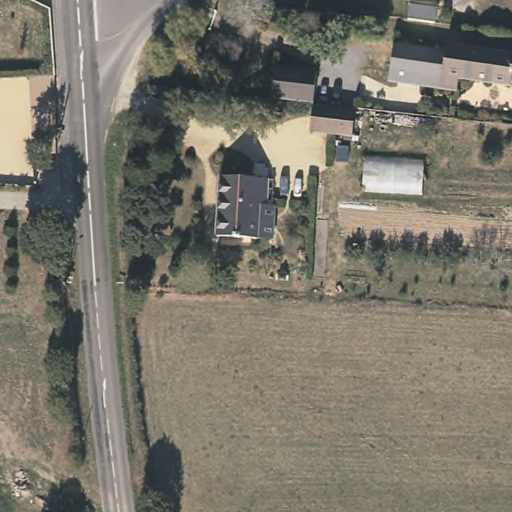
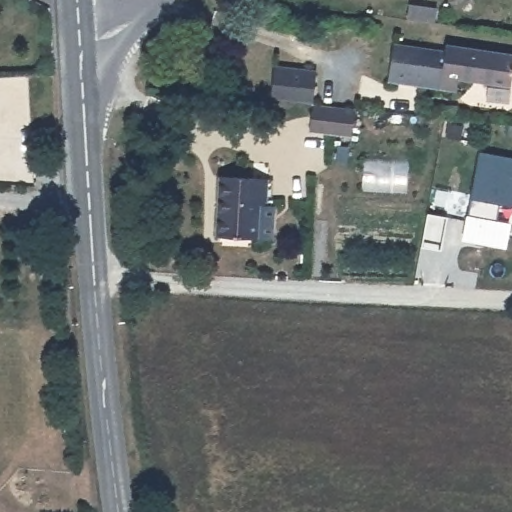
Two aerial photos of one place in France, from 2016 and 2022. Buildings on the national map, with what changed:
unchanged [(441,8),(439,22),(407,18),(410,3),(441,8)]
unchanged [(512,52),(512,84),(460,78),(458,89),(389,79),(394,43),(445,50),(447,43),(512,52)]
unchanged [(323,64),(319,93),(274,88),(278,58),(323,64)]
unchanged [(360,99),(357,136),(316,131),(320,94),(360,99)]
new [(461,239),(478,152),(512,160),(512,206),(496,202),(493,221),(510,224),(502,248),(461,239)]
unchanged [(270,178),(269,206),(260,206),(259,239),(218,237),(221,176),(270,178)]

